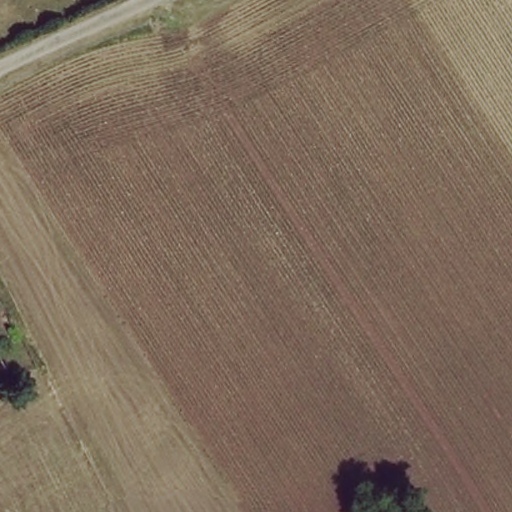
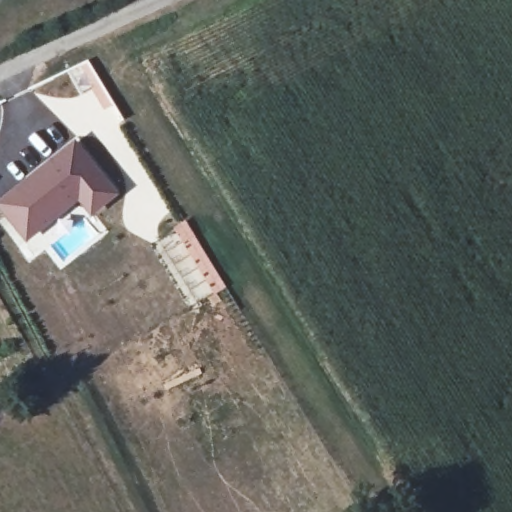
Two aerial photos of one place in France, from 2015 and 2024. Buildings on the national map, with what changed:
new [(27,243),(0,209),(0,200),(75,140),(118,194),(92,215),(78,199),(27,243)]
new [(209,296),(177,245),(183,242),(174,227),(185,220),(226,286),(209,296)]

